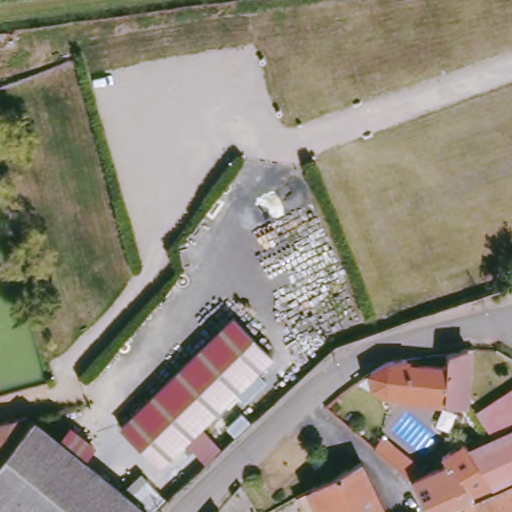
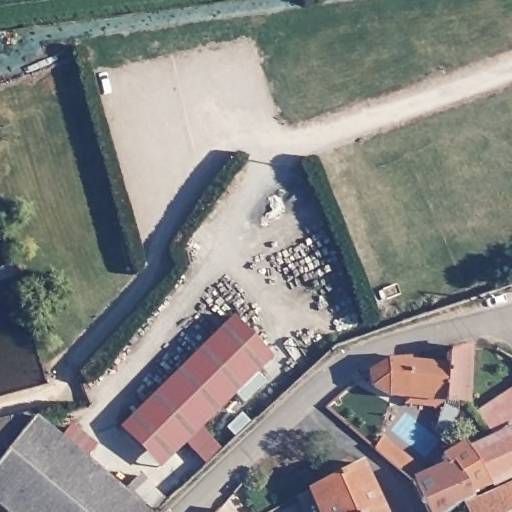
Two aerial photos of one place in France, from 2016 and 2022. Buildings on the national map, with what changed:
unchanged [(235,317),(274,356),(161,467),(123,428),(235,317)]
unchanged [(379,389),(372,373),(394,362),(423,359),(424,366),(449,370),(448,355),(465,351),(470,402),(450,400),(395,393),(379,389)]
unchanged [(512,388),(512,416),(490,427),(474,405),(512,388)]
unchanged [(26,412),(40,424),(0,466),(0,419),(26,412)]
unchanged [(351,421),(358,414),(421,464),(424,470),(448,457),(441,446),(464,435),(467,439),(512,420),(512,470),(491,476),(496,484),(512,478),(512,504),(495,512),(469,512),(463,495),(433,512),(430,512),(427,503),(413,478),(351,421)]
unchanged [(121,490),(140,471),(169,495),(151,512),(6,512),(5,511),(0,506),(0,466),(40,424),(121,490)]
unchanged [(317,483),(365,461),(389,512),(329,512),(317,483)]
unchanged [(301,491),(317,483),(329,512),(310,512),(301,491)]
unchanged [(5,511),(4,512),(0,512),(0,506),(5,511)]

